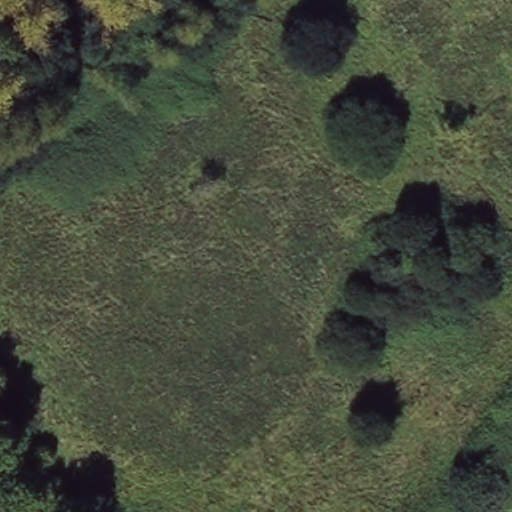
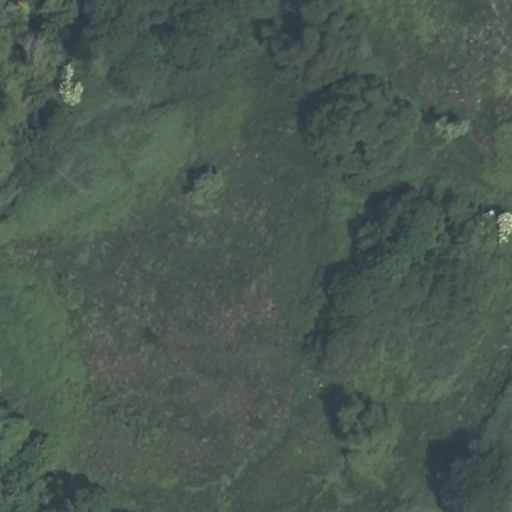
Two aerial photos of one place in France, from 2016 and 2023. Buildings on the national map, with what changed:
[]

